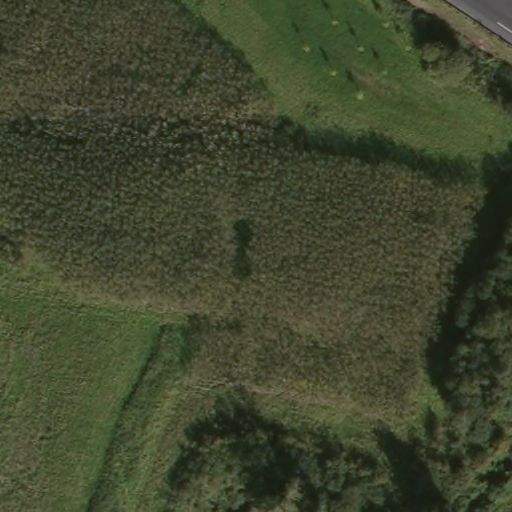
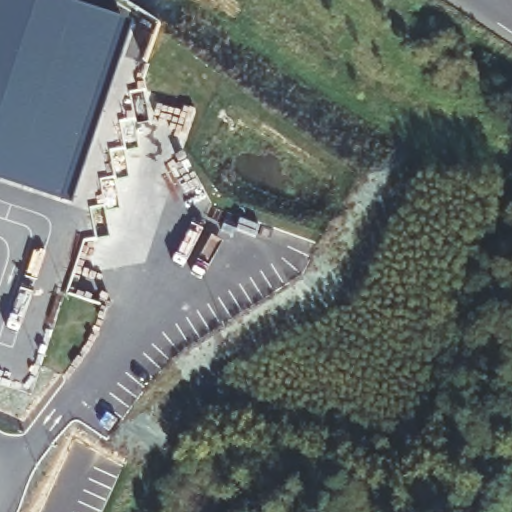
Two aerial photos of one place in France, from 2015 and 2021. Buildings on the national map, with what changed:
new [(68,200),(0,178),(0,0),(34,0),(123,29),(68,200)]

